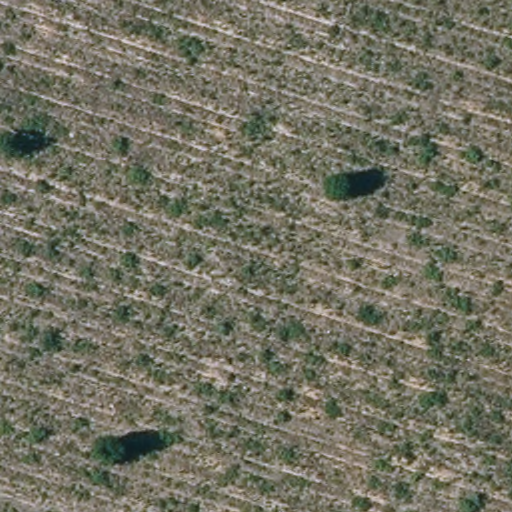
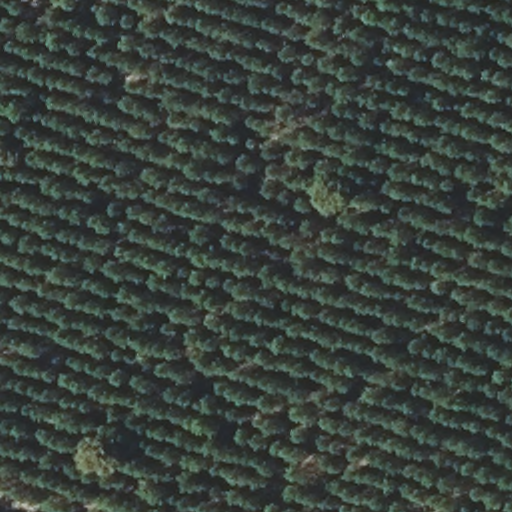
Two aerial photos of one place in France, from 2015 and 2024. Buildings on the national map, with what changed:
[]

